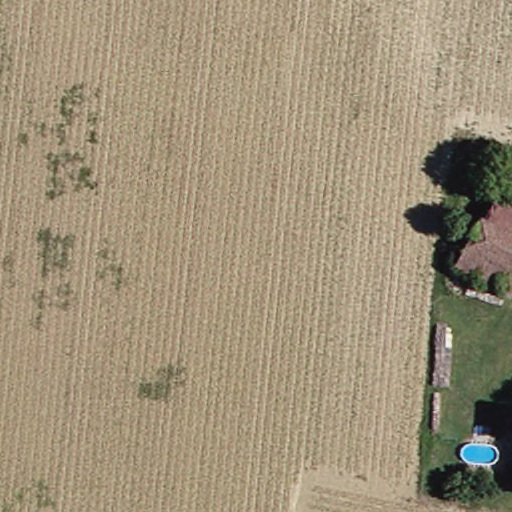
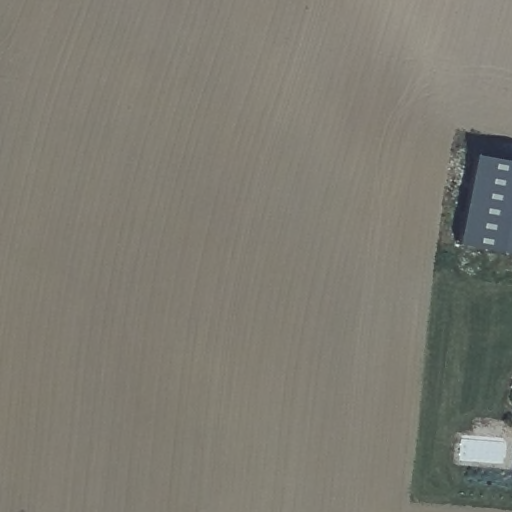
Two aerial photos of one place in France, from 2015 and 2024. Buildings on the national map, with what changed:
new [(447,246),(464,159),(512,168),(512,256),(447,246)]
demolished [(503,257),(493,277),(469,264),(495,214),(512,224),(512,263),(503,257)]

